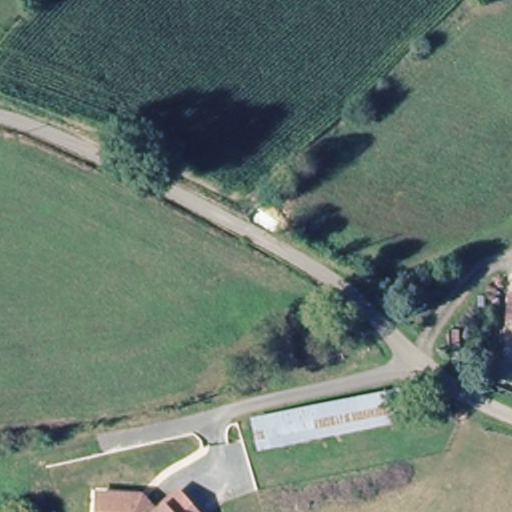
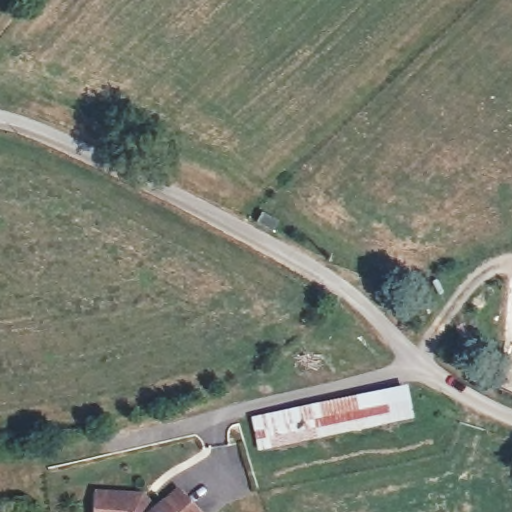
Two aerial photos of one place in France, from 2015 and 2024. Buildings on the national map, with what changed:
unchanged [(406,394),(412,423),(261,456),(254,424),(406,394)]
unchanged [(140,501),(146,501),(156,510),(176,489),(200,512),(96,512),(97,499),(97,493),(116,494),(141,495),(140,501)]

